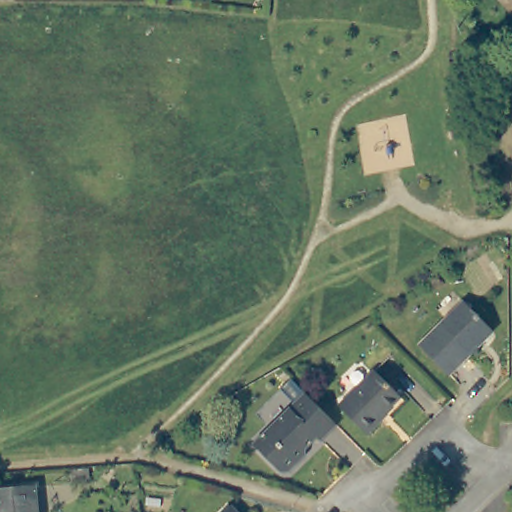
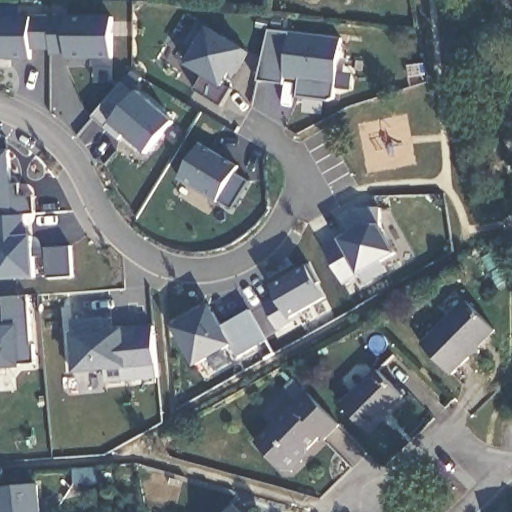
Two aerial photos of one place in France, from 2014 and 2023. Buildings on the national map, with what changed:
new [(30,15),(112,16),(111,60),(67,60),(66,55),(50,55),(50,49),(31,50),(30,60),(0,60),(0,16),(30,15)]
new [(221,106),(194,89),(202,75),(185,65),(194,49),(184,43),(197,20),(206,26),(245,50),(223,85),(231,90),(221,106)]
new [(297,96),(300,79),(283,75),(282,82),(259,80),(269,30),(341,39),(332,97),(327,100),(297,96)]
new [(138,92),(173,123),(147,153),(110,124),(138,92)]
new [(179,179),(202,144),(239,167),(235,173),(249,181),(231,210),(217,202),(179,179)]
new [(11,185),(20,185),(21,198),(34,197),(35,215),(13,215),(0,216),(0,151),(9,150),(11,185)]
new [(323,248),(340,239),(350,234),(340,215),(351,209),(380,207),(379,225),(395,254),(382,261),(387,271),(365,284),(360,273),(343,284),(323,248)]
new [(291,322),(279,330),(265,304),(278,296),(271,286),(307,266),(325,298),(290,318),(291,322)]
new [(29,296),(31,345),(35,345),(35,363),(19,365),(19,367),(0,368),(0,298),(29,296)]
unchanged [(493,329),(480,341),(476,355),(465,355),(449,372),(420,345),(464,301),(493,329)]
new [(173,327),(209,305),(221,326),(250,310),(267,340),(239,357),(230,345),(216,353),(223,366),(210,373),(202,361),(195,365),(173,327)]
new [(107,383),(105,370),(74,373),(71,374),(68,345),(72,344),(71,333),(70,320),(110,317),(111,330),(125,328),(152,326),(157,365),(158,379),(107,383)]
unchanged [(401,397),(380,420),(382,423),(368,437),(340,409),(376,372),(401,397)]
unchanged [(331,419),(340,428),(320,445),(316,442),(300,457),(302,462),(287,473),(256,446),(308,395),(331,419)]
unchanged [(0,512),(0,487),(40,485),(40,512),(0,512)]
unchanged [(228,512),(235,505),(242,512),(228,512)]

